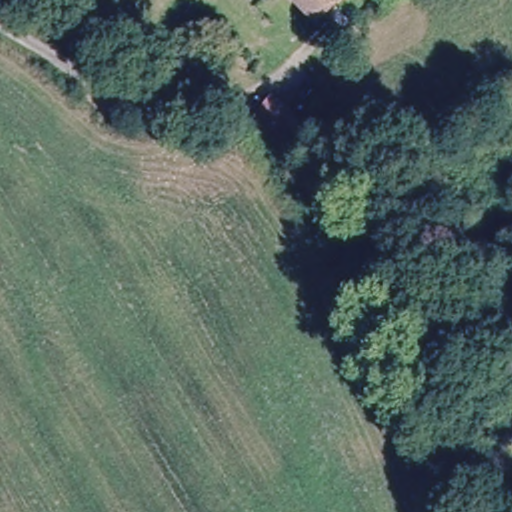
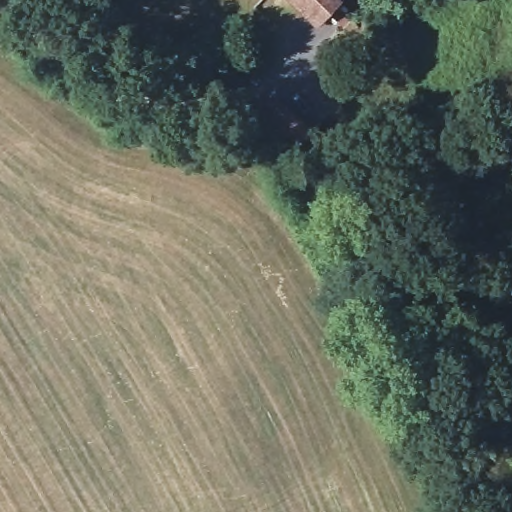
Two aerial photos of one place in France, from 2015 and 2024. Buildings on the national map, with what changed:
unchanged [(316,20),(297,0),(336,0),(316,20)]
unchanged [(318,125),(296,153),(248,117),(271,90),(318,125)]

